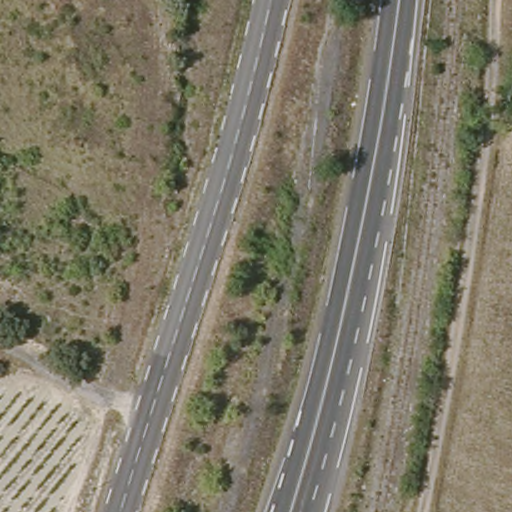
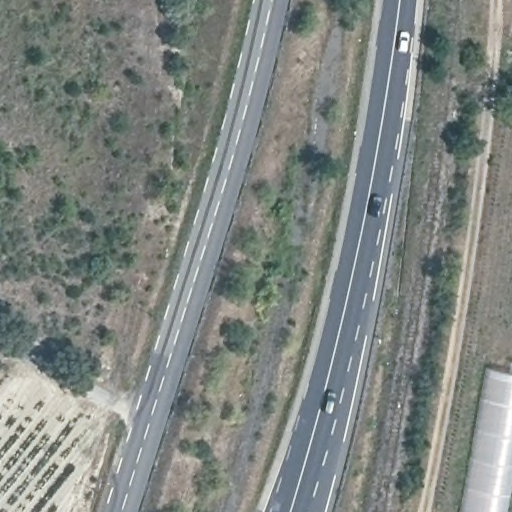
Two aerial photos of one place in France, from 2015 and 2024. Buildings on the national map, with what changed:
unchanged [(509,102),(512,101),(512,111),(509,102)]
new [(489,367),(512,371),(512,483),(507,512),(463,512),(489,367)]

